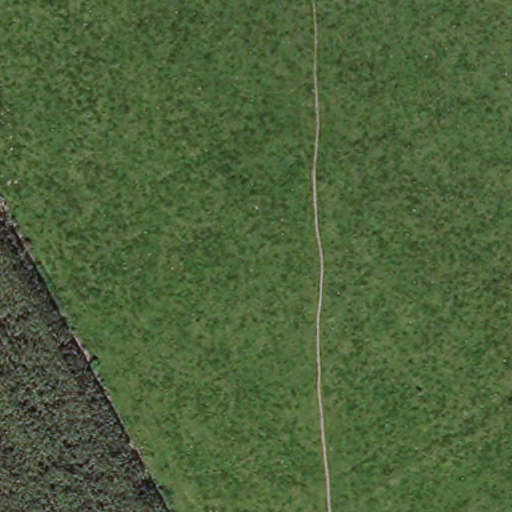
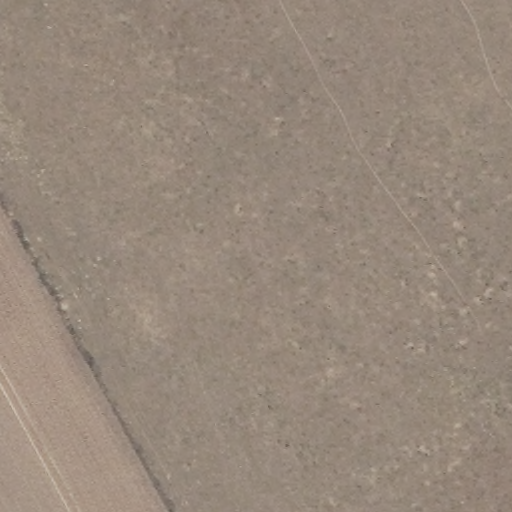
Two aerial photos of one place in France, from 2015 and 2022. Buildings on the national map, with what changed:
[]

